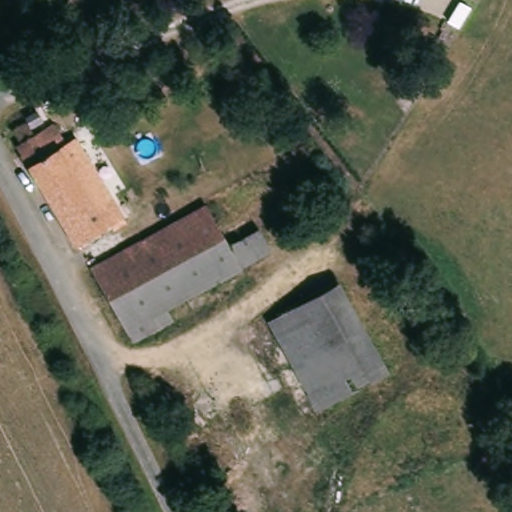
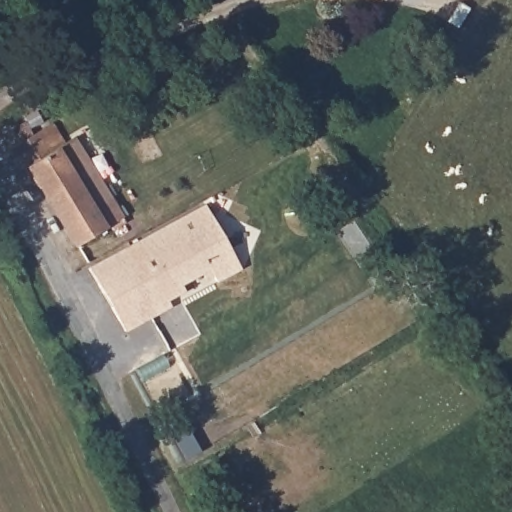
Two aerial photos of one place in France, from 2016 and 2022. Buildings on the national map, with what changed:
unchanged [(29,120),(36,134),(52,124),(66,145),(79,139),(126,218),(74,247),(14,149),(21,145),(12,131),(29,120)]
unchanged [(210,205),(244,269),(171,310),(176,317),(138,341),(94,270),(210,205)]
demolished [(390,371),(293,424),(256,355),(279,343),(268,321),(341,282),(390,371)]
unchanged [(161,371),(174,394),(160,403),(146,380),(161,371)]

